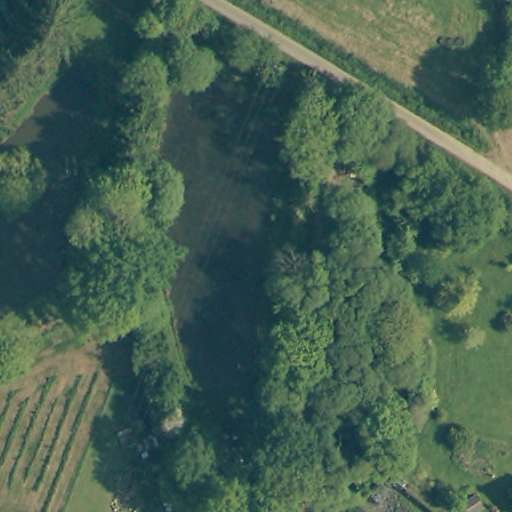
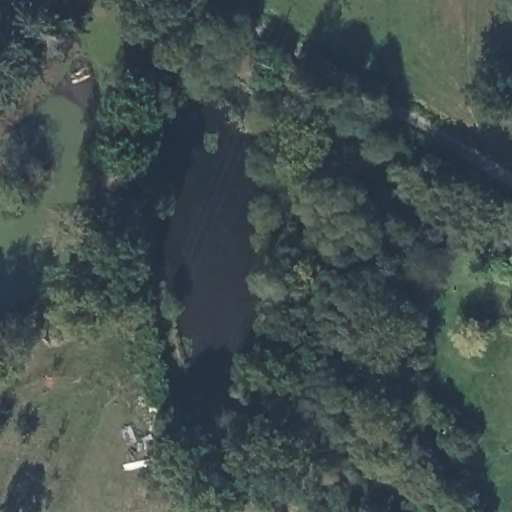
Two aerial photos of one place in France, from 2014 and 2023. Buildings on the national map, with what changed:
unchanged [(14,43),(0,54),(0,25),(14,43)]
unchanged [(263,435),(268,459),(248,463),(246,455),(212,462),(208,446),(263,435)]

